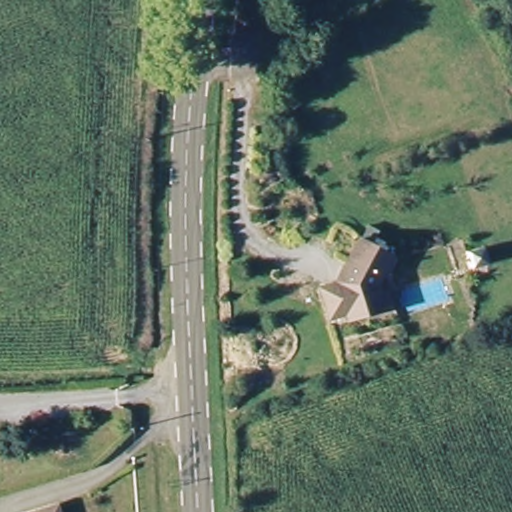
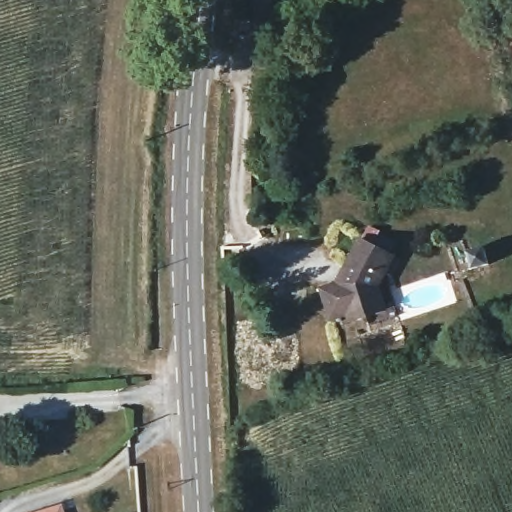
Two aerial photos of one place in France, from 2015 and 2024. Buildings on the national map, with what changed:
unchanged [(356,320),(355,313),(337,318),(335,308),(326,285),(343,281),(365,238),(399,254),(383,284),(388,299),(391,308),(356,320)]
unchanged [(481,247),(488,265),(470,271),(463,253),(481,247)]
unchanged [(60,510),(61,512),(53,512),(60,510)]

